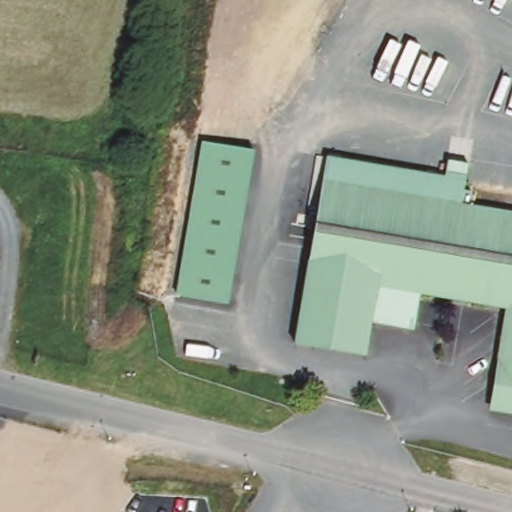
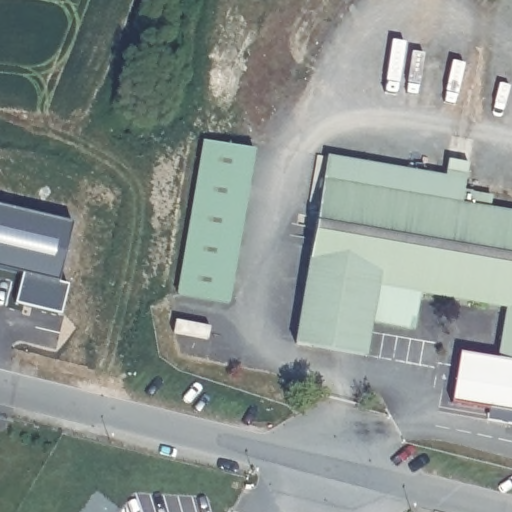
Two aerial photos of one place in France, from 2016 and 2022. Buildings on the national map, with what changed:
unchanged [(202,144),(254,151),(227,304),(177,295),(202,144)]
unchanged [(328,153),(443,171),(447,154),(469,159),(465,185),(474,187),(472,205),(323,180),(328,153)]
unchanged [(504,311),(420,297),(307,277),(323,180),(472,205),(512,212),(512,417),(491,413),(504,311)]
new [(17,302),(23,272),(0,267),(0,207),(72,224),(59,282),(67,286),(60,315),(17,302)]
unchanged [(420,297),(413,333),(372,326),(367,358),(296,346),(307,277),(420,297)]

